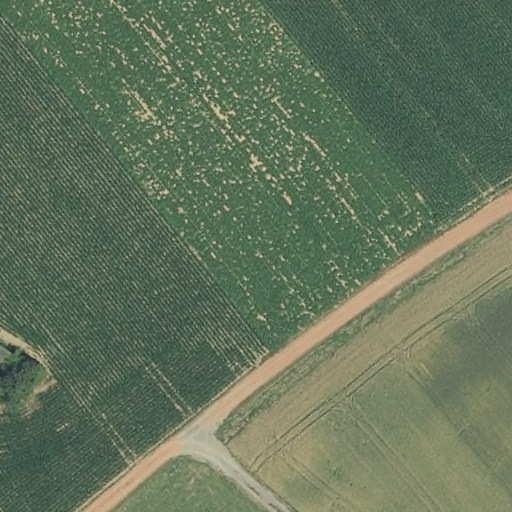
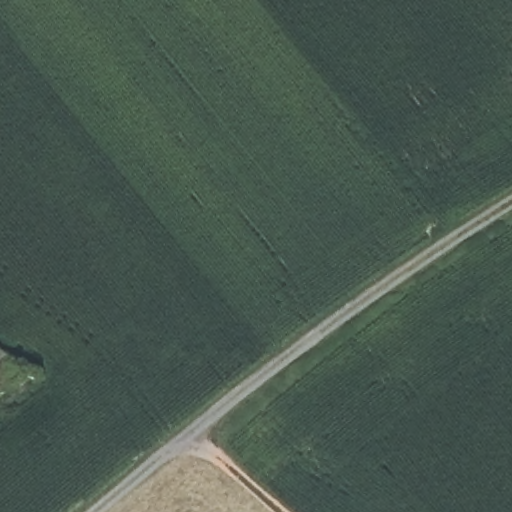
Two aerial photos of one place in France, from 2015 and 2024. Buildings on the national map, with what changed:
unchanged [(14,358),(0,374),(0,346),(14,358)]

